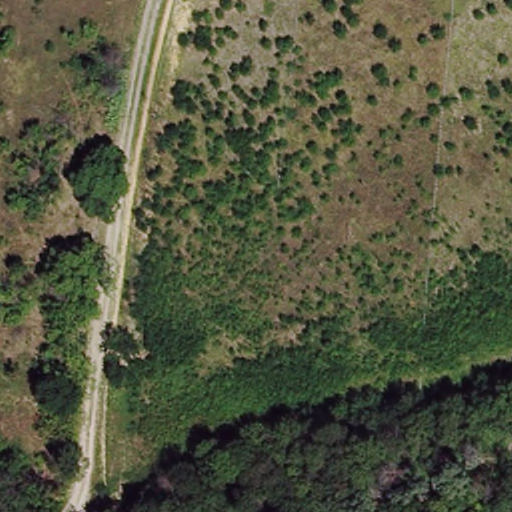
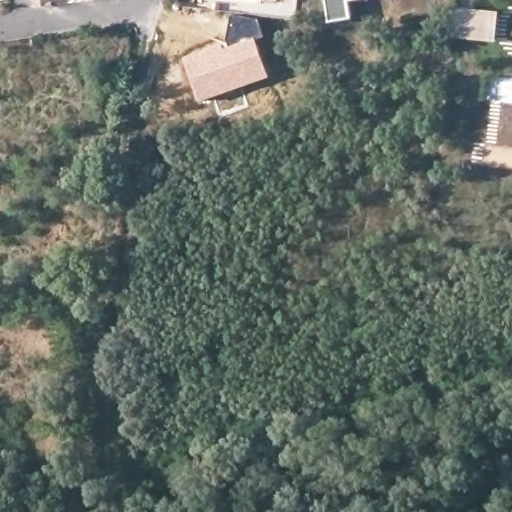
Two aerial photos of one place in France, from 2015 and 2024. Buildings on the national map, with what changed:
new [(282,2),(257,1),(245,0),(282,0),(282,2)]
new [(350,1),(352,19),(328,23),(325,0),(356,0),(350,1)]
new [(454,6),(498,10),(496,42),(450,37),(454,6)]
new [(223,41),(225,46),(255,35),(270,77),(200,102),(182,56),(223,41)]

